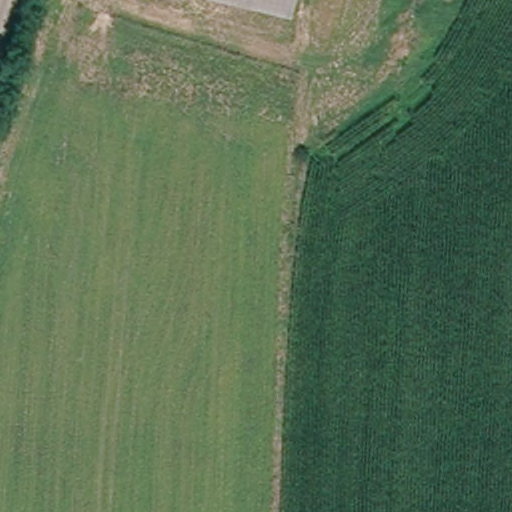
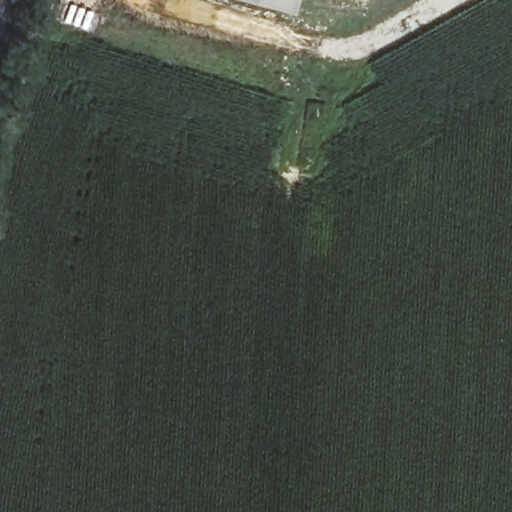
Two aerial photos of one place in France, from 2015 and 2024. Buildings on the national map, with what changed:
unchanged [(262,0),(294,0),(291,9),(262,0)]

